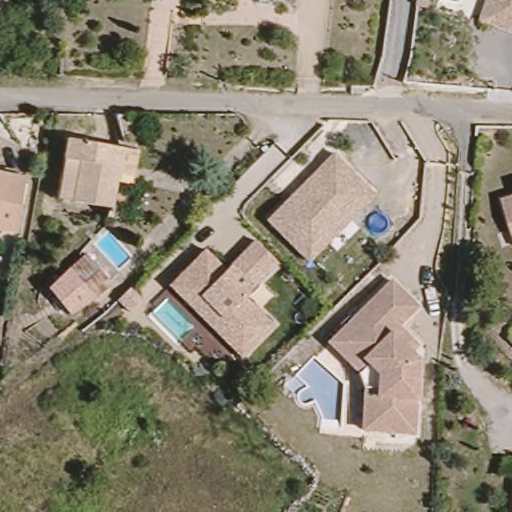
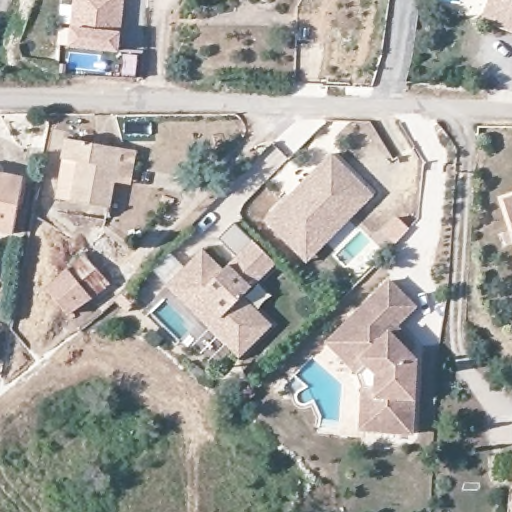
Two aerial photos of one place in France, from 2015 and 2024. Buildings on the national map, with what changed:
new [(74,0),(121,0),(115,48),(69,44),(74,0)]
unchanged [(487,22),(493,0),(512,0),(512,31),(487,22)]
unchanged [(64,144),(117,154),(134,157),(129,183),(113,180),(106,214),(54,204),(64,144)]
unchanged [(369,199),(303,261),(264,221),(331,154),(369,199)]
unchanged [(0,235),(0,175),(22,179),(13,237),(0,235)]
unchanged [(506,197),(512,195),(512,215),(506,197)]
unchanged [(218,272),(248,244),(268,262),(248,284),(245,297),(267,326),(234,360),(204,330),(163,285),(197,251),(218,272)]
unchanged [(43,285),(65,267),(86,250),(109,277),(90,293),(68,312),(43,285)]
unchanged [(415,309),(396,329),(416,350),(410,357),(414,361),(413,435),(359,431),(356,384),(354,376),(324,343),(387,279),(415,309)]

